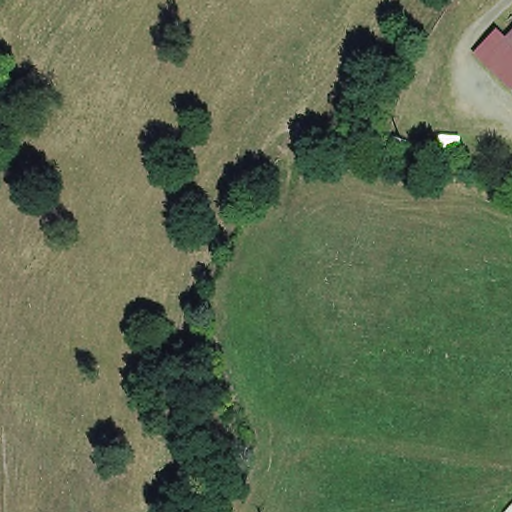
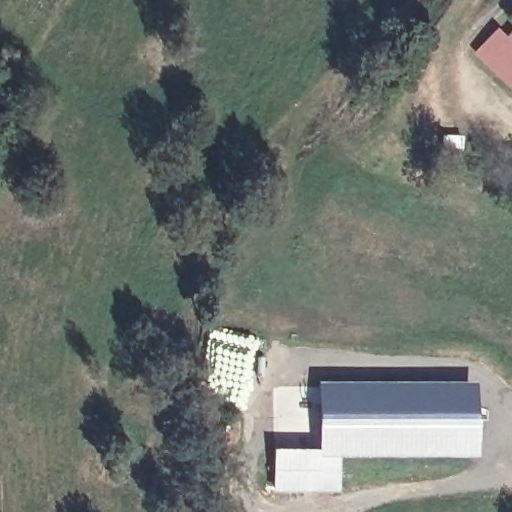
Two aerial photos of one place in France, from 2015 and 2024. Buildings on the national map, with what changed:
unchanged [(480,53),(500,28),(512,37),(512,82),(480,53)]
new [(478,386),(480,461),(339,459),(339,495),(274,495),(274,451),(319,452),(319,384),(478,386)]

